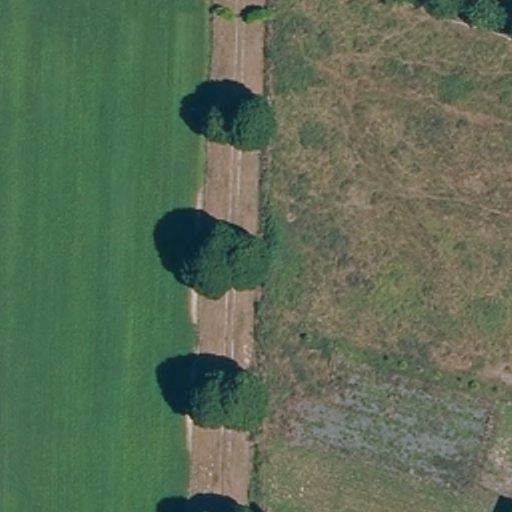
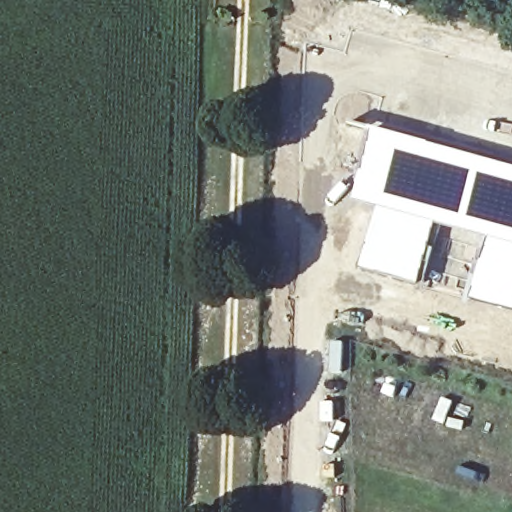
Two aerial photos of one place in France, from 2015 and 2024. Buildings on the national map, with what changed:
new [(373,127),(512,165),(512,244),(488,237),(439,225),(376,207),(352,200),(373,127)]
new [(376,207),(439,225),(420,286),(359,269),(376,207)]
new [(488,237),(512,244),(512,311),(470,300),(488,237)]
new [(330,340),(346,341),(343,372),(327,371),(330,340)]

